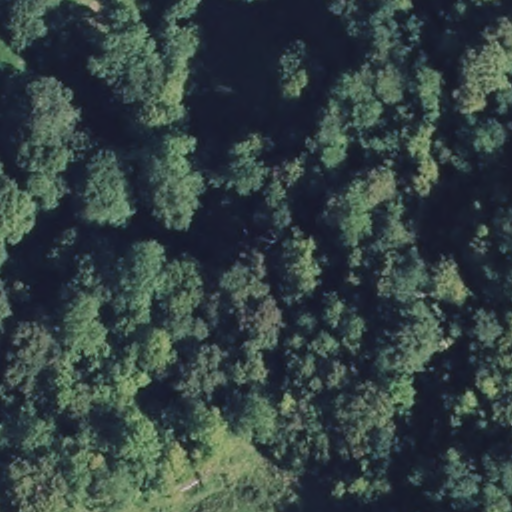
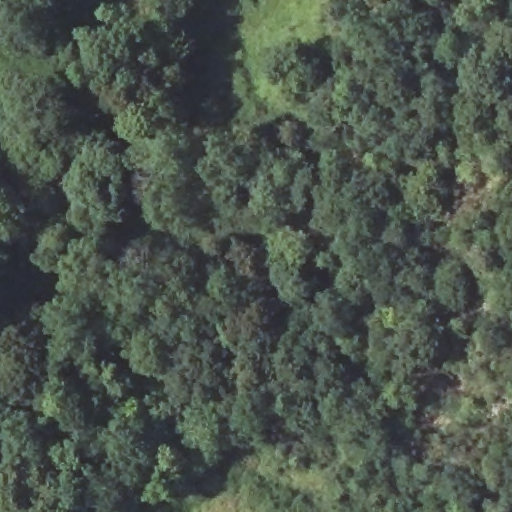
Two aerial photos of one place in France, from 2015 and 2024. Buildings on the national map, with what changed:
[]

